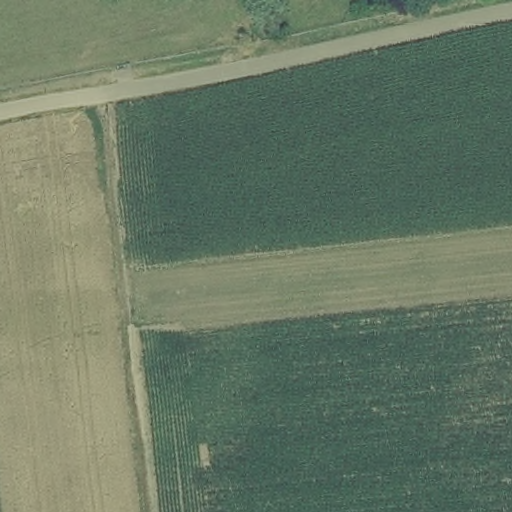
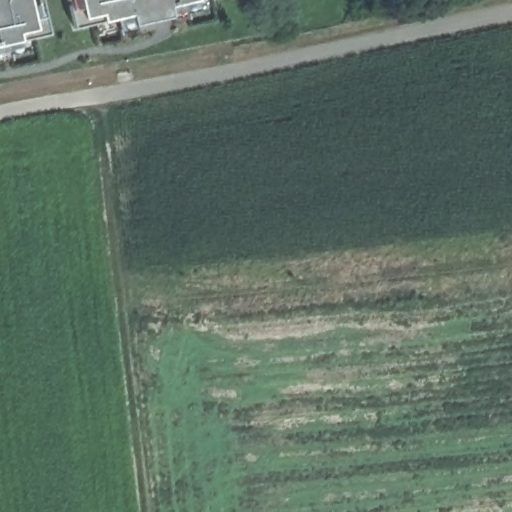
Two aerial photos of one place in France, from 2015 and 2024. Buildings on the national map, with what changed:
new [(42,0),(49,34),(29,39),(31,49),(9,54),(10,59),(0,61),(0,0),(42,0)]
new [(186,13),(186,18),(172,22),(170,17),(135,26),(136,30),(120,33),(119,29),(97,34),(94,24),(74,29),(67,0),(206,0),(208,9),(186,13)]

